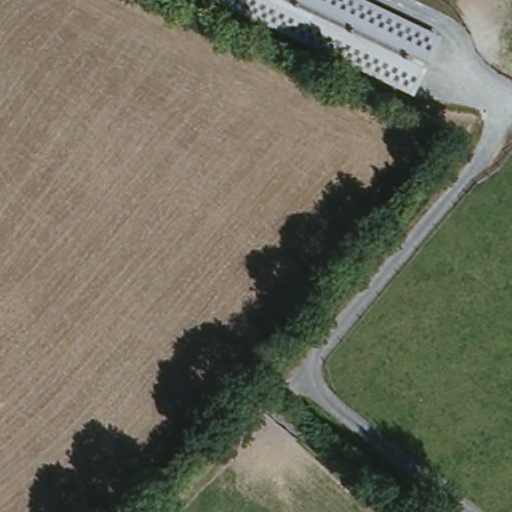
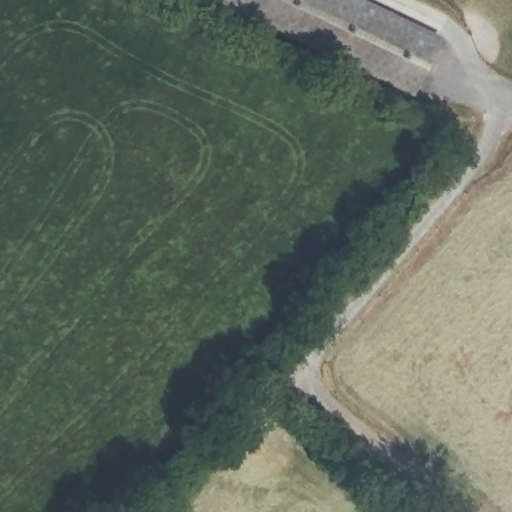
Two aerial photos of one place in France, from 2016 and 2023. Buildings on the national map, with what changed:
unchanged [(442,36),(416,98),(204,0),(367,0),(442,36)]

